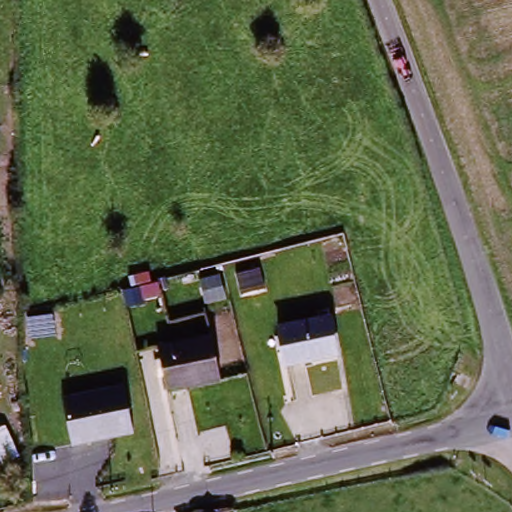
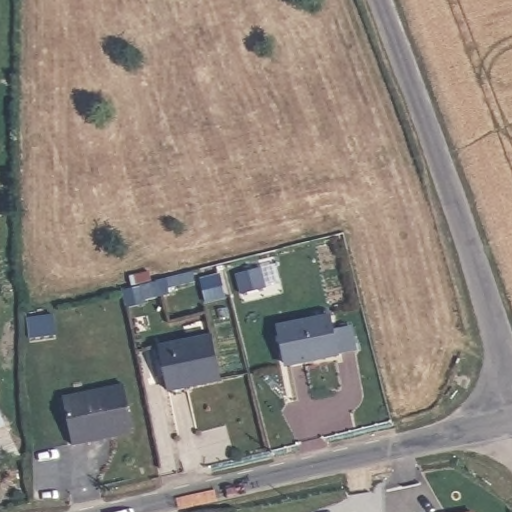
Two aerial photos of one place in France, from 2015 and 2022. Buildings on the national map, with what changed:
unchanged [(286,366),(279,327),(326,318),(333,357),(286,366)]
unchanged [(165,350),(217,338),(226,381),(174,392),(165,350)]
unchanged [(124,387),(133,434),(72,445),(63,399),(124,387)]
unchanged [(7,424),(22,455),(0,466),(0,427),(7,424)]

